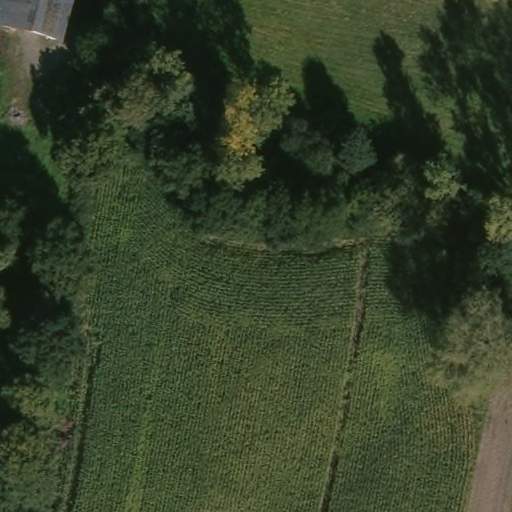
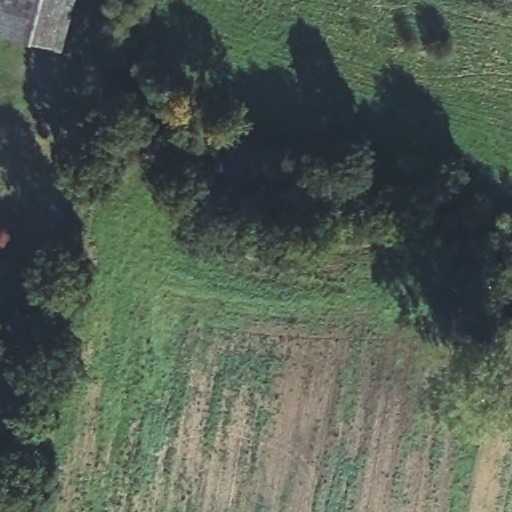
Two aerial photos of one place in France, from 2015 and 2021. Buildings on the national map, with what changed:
unchanged [(65,41),(0,24),(0,0),(76,0),(65,41)]

